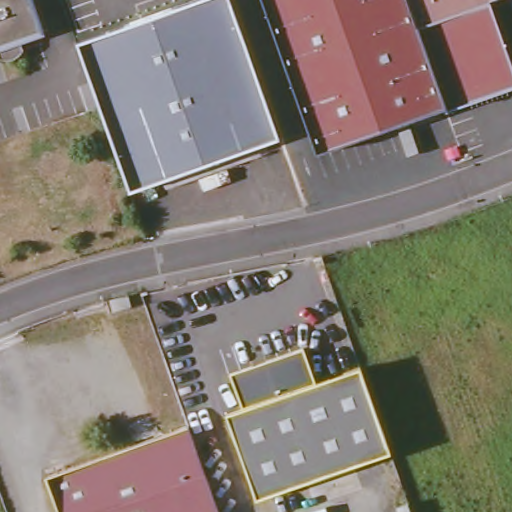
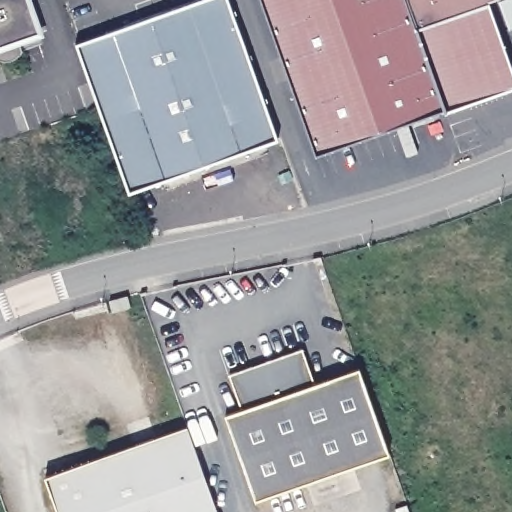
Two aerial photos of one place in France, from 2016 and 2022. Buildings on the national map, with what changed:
unchanged [(25,40),(27,51),(26,53),(24,55),(21,58),(18,59),(17,60),(15,60),(13,60),(11,60),(7,60),(5,60),(4,59),(0,49),(0,0),(35,0),(46,32),(25,40)]
unchanged [(229,0),(230,5),(278,139),(129,194),(98,109),(87,76),(75,42),(193,0),(229,0)]
unchanged [(488,0),(512,67),(512,84),(446,110),(443,105),(315,150),(263,0),(488,0)]
unchanged [(130,306),(111,311),(108,301),(127,296),(130,306)]
unchanged [(228,371),(301,345),(316,385),(245,410),(228,371)]
unchanged [(390,454),(256,497),(230,415),(363,368),(390,454)]
unchanged [(51,478),(193,428),(223,512),(63,512),(51,478)]

